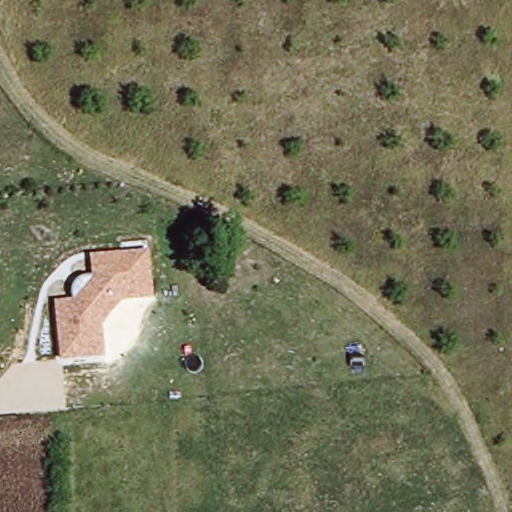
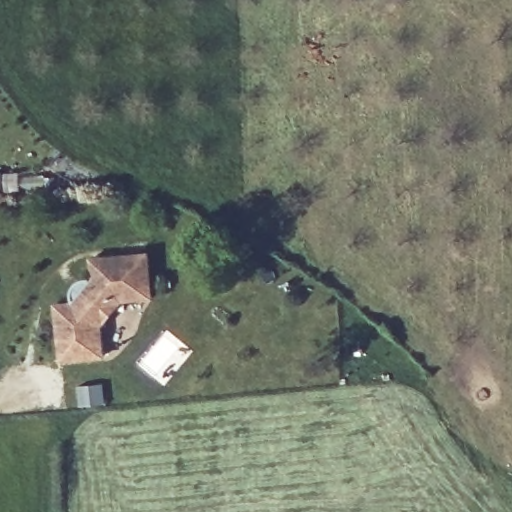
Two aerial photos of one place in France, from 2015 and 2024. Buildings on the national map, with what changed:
unchanged [(149,251),(155,298),(123,302),(104,328),(107,357),(61,362),(55,302),(75,300),(93,279),(90,256),(149,251)]

